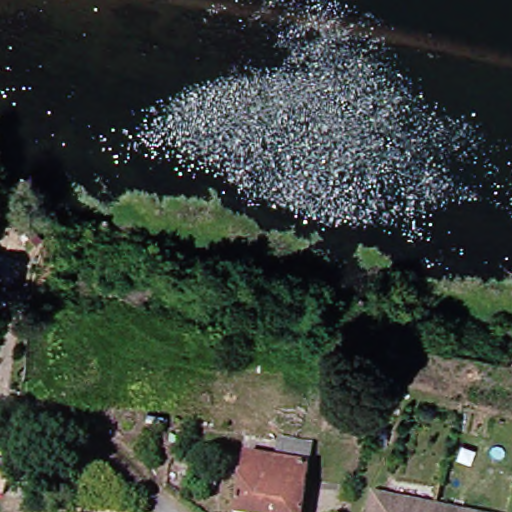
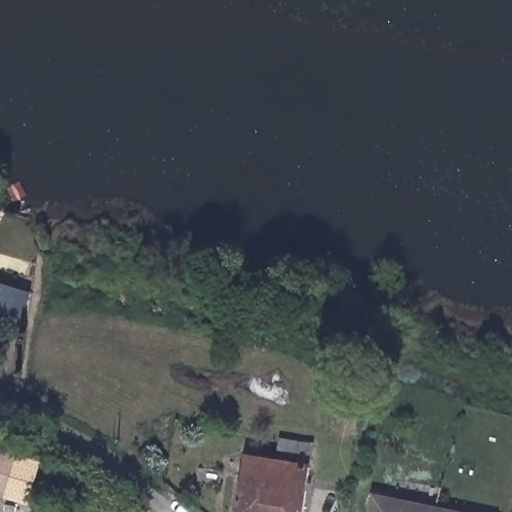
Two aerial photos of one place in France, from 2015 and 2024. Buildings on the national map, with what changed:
unchanged [(306,449),(301,473),(238,456),(242,438),(243,435),(280,443),(306,449)]
new [(41,463),(28,506),(0,497),(0,450),(41,463)]
unchanged [(224,512),(238,456),(301,473),(292,512),(224,512)]
unchanged [(473,512),(366,512),(370,491),(473,512)]

